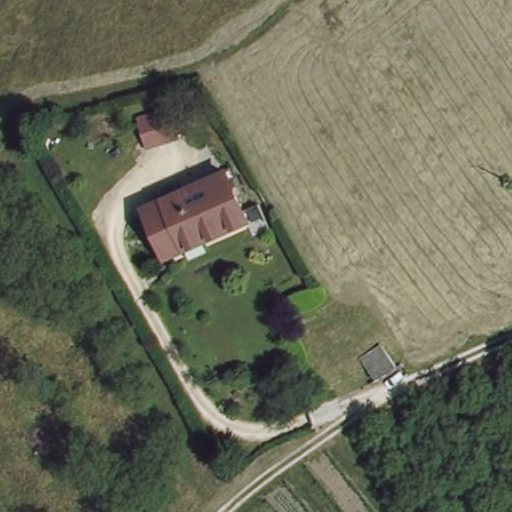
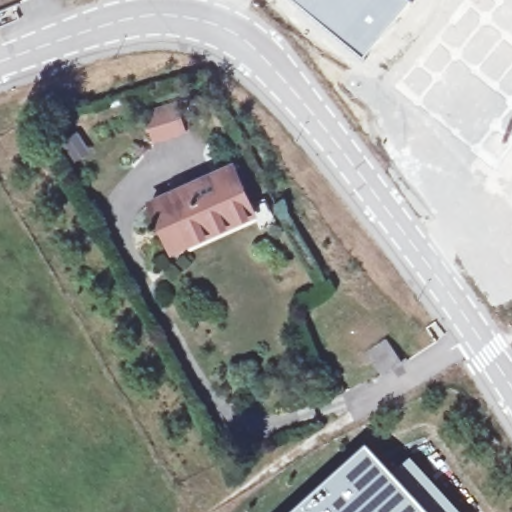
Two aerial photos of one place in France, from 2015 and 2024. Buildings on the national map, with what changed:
new [(291,0),(410,0),(362,57),(291,0)]
unchanged [(143,112),(181,101),(190,128),(152,139),(143,112)]
unchanged [(172,247),(151,200),(170,193),(234,165),(255,211),(233,221),(192,239),(172,247)]
unchanged [(383,373),(367,351),(387,338),(402,359),(383,373)]
new [(360,446),(387,474),(420,512),(287,512),(360,446)]
new [(387,474),(407,458),(455,512),(420,512),(387,474)]

